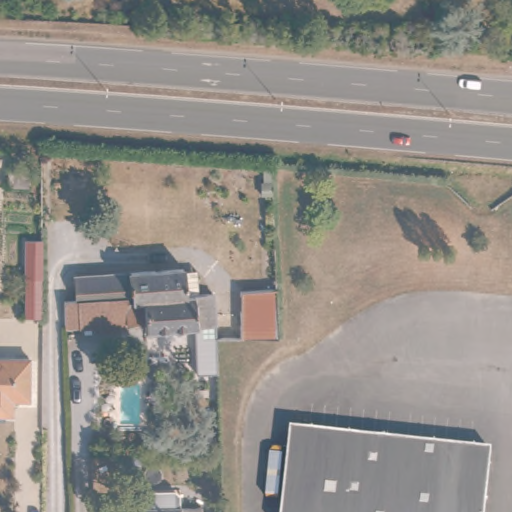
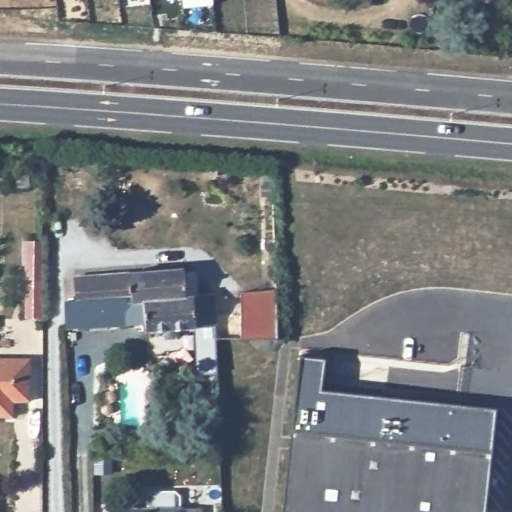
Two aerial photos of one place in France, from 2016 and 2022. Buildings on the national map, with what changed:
new [(7,167),(29,167),(27,186),(7,185),(7,167)]
unchanged [(24,244),(40,245),(39,265),(38,310),(22,308),(24,244)]
unchanged [(76,285),(182,280),(184,281),(200,280),(202,302),(171,304),(77,308),(76,285)]
unchanged [(214,335),(149,340),(147,331),(71,336),(70,322),(70,308),(77,308),(171,304),(202,302),(217,301),(225,301),(226,322),(218,323),(214,323),(214,335)]
unchanged [(245,302),(277,301),(280,348),(245,348),(245,302)]
unchanged [(191,383),(190,344),(202,344),(202,384),(191,383)]
unchanged [(32,398),(16,398),(15,412),(0,412),(0,355),(34,355),(32,398)]
new [(298,355),(323,358),(319,388),(494,408),(491,460),(292,438),(298,355)]
unchanged [(485,512),(284,512),(292,438),(491,460),(485,512)]
unchanged [(151,495),(155,491),(177,491),(182,495),(182,508),(204,507),(204,512),(111,512),(111,508),(151,508),(151,495)]

